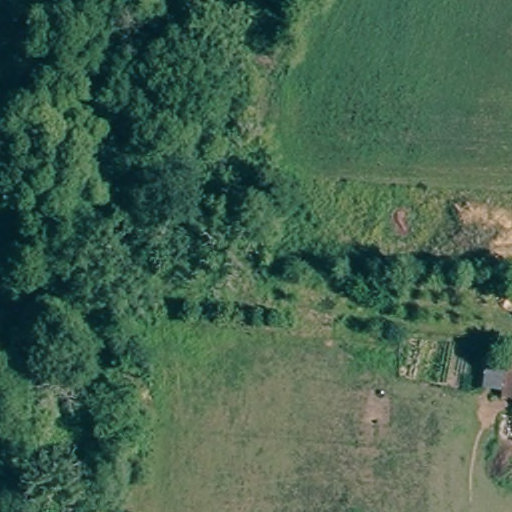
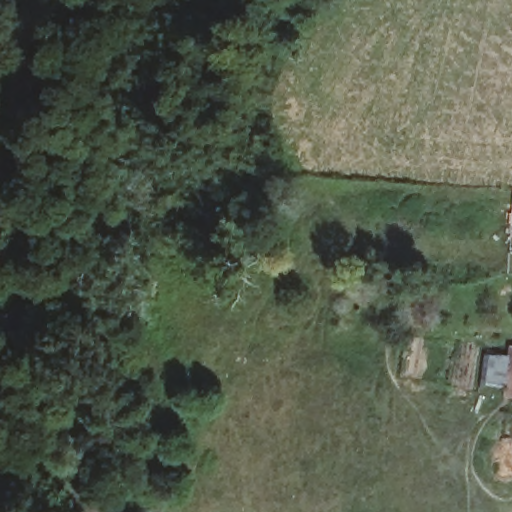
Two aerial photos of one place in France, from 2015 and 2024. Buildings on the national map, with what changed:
unchanged [(511,351),(512,351),(512,402),(510,401),(511,351)]

